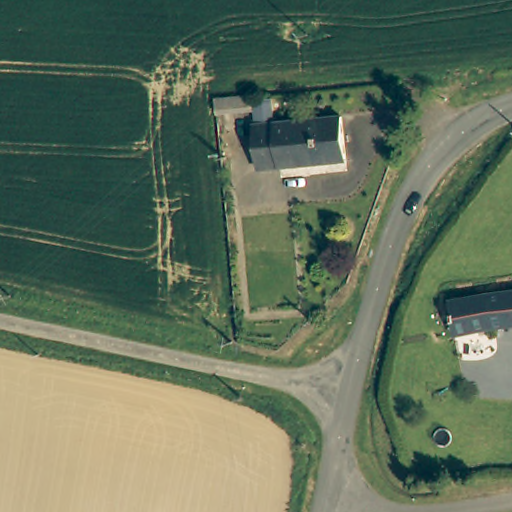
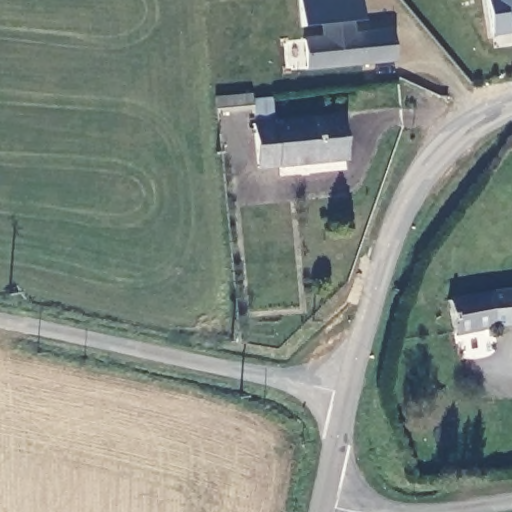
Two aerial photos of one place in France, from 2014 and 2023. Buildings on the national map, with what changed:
new [(302,37),(317,35),(315,25),(301,26),(299,0),(359,0),(362,21),(351,22),(355,31),(392,28),(395,62),(306,71),(302,37)]
new [(492,29),(487,0),(512,0),(512,30),(512,26),(492,29)]
unchanged [(251,110),(218,111),(218,95),(252,94),(251,110)]
unchanged [(343,160),(258,166),(254,124),(340,119),(343,160)]
unchanged [(440,301),(512,288),(512,322),(446,333),(440,301)]
demolished [(308,346),(297,346),(298,337),(308,337),(308,346)]

